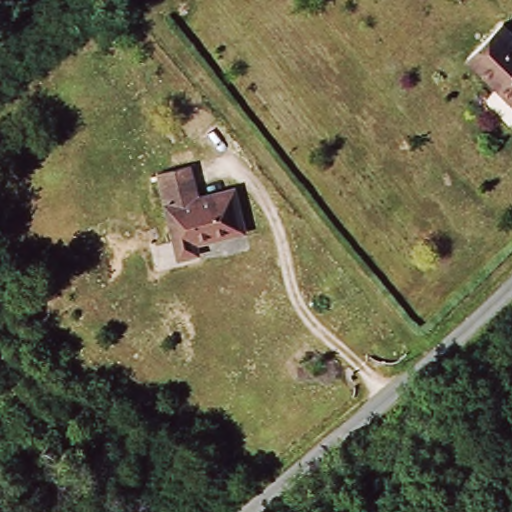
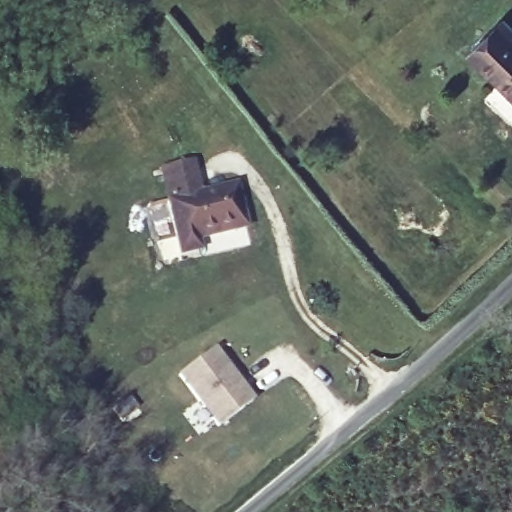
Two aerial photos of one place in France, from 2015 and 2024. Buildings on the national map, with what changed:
unchanged [(508,18),(512,22),(512,120),(511,120),(488,96),(501,84),(471,53),(508,18)]
unchanged [(180,257),(177,239),(159,172),(192,163),(201,195),(239,187),(249,228),(198,240),(200,253),(180,257)]
new [(178,377),(216,348),(255,401),(217,429),(178,377)]

